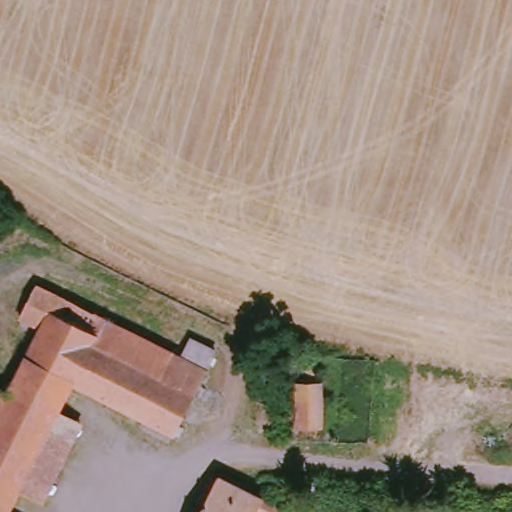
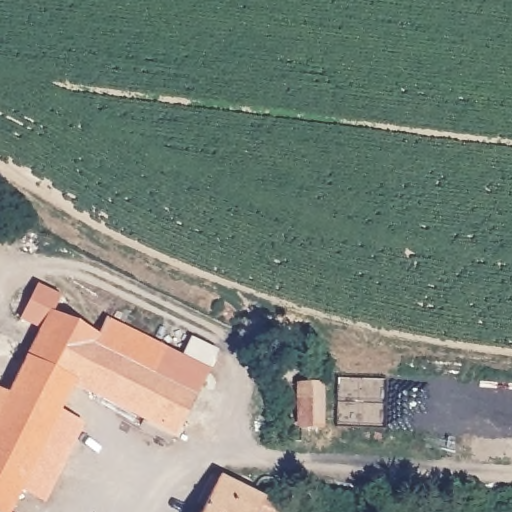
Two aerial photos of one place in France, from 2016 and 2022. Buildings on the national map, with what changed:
unchanged [(0,512),(0,391),(16,399),(50,334),(30,324),(47,292),(192,361),(200,345),(226,358),(183,439),(80,389),(65,418),(27,493),(18,512),(0,512)]
unchanged [(302,428),(300,386),(319,384),(322,426),(302,428)]
unchanged [(65,418),(88,429),(52,505),(27,493),(65,418)]
unchanged [(207,512),(224,478),(283,509),(282,512),(207,512)]

